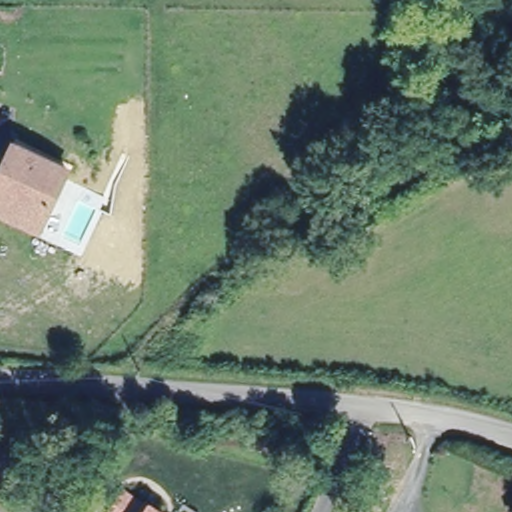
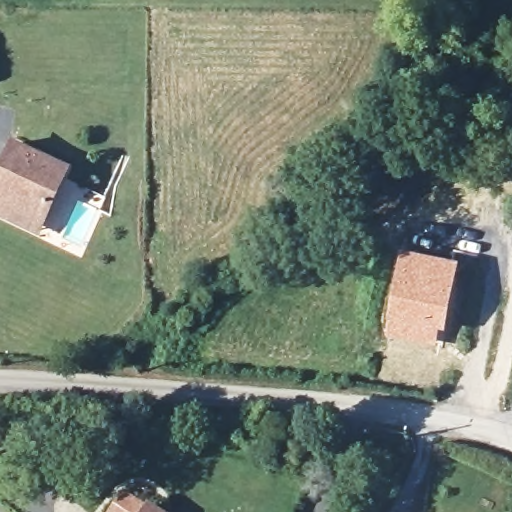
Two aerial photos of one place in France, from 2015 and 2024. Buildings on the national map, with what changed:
unchanged [(0,210),(0,175),(17,142),(68,168),(60,185),(52,201),(47,209),(43,217),(37,230),(0,210)]
new [(402,251),(460,262),(446,333),(440,332),(437,347),(385,337),(402,251)]
unchanged [(158,512),(140,512),(145,503),(158,512)]

